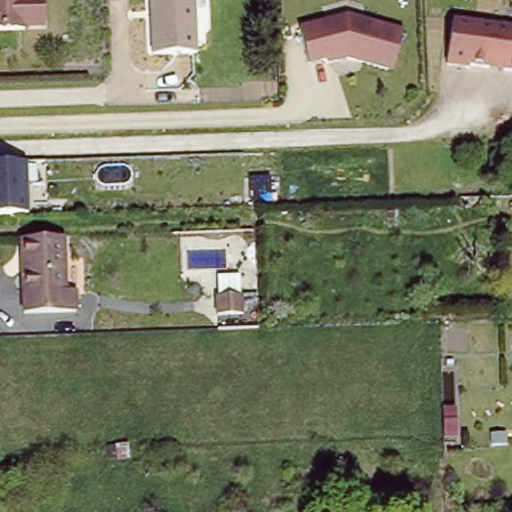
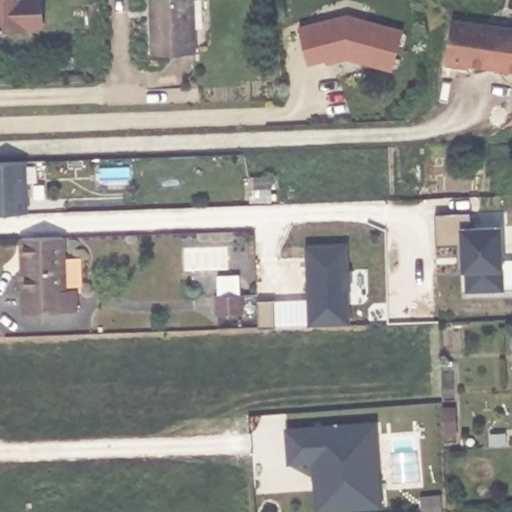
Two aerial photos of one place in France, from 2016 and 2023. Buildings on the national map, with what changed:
unchanged [(44,3),(45,32),(28,33),(28,36),(0,37),(0,0),(26,0),(27,4),(44,3)]
unchanged [(149,0),(192,0),(193,54),(151,56),(149,0)]
unchanged [(295,25),(347,18),(402,32),(389,75),(344,62),(302,66),(295,25)]
unchanged [(452,23),(512,30),(512,76),(447,67),(452,23)]
unchanged [(0,162),(27,160),(29,213),(0,215),(0,162)]
new [(473,225),(504,224),(507,270),(507,291),(467,292),(470,272),(462,273),(462,245),(437,245),(437,215),(472,213),(473,225)]
unchanged [(66,237),(68,292),(77,291),(78,312),(25,314),(24,271),(23,262),(23,239),(66,237)]
new [(310,325),(307,244),(348,243),(350,269),(352,269),(353,291),(350,291),(353,324),(310,325)]
unchanged [(222,314),(221,295),(245,294),(246,313),(222,314)]
unchanged [(445,435),(444,417),(444,409),(455,409),(456,416),(457,434),(445,435)]
new [(319,511),(317,489),(326,489),(324,460),(291,463),(288,429),(368,423),(377,423),(382,482),(383,506),(319,511)]

